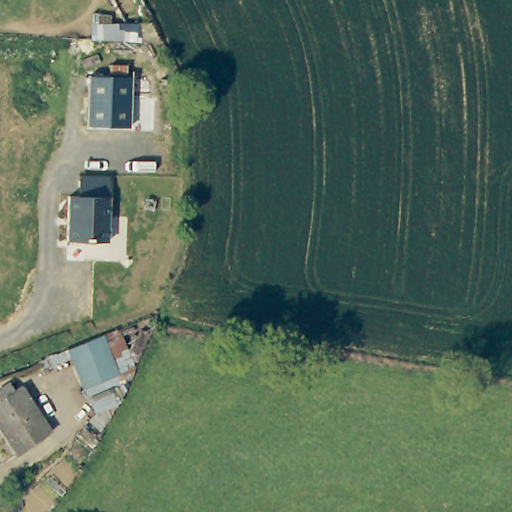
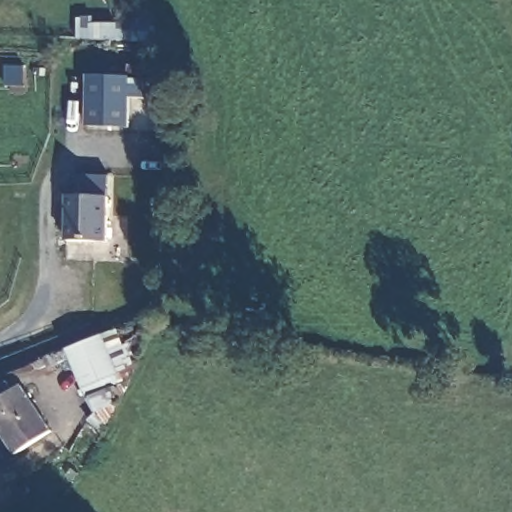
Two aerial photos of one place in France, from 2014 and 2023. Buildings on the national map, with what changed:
unchanged [(92,13),(110,14),(110,23),(149,24),(157,41),(89,39),(92,13)]
unchanged [(88,74),(108,74),(109,64),(125,65),(126,74),(131,74),(128,128),(85,126),(88,74)]
unchanged [(76,197),(77,175),(109,177),(108,243),(66,241),(66,196),(76,197)]
unchanged [(107,334),(123,374),(88,389),(71,349),(107,334)]
unchanged [(51,431),(15,454),(0,432),(0,399),(21,385),(51,431)]

